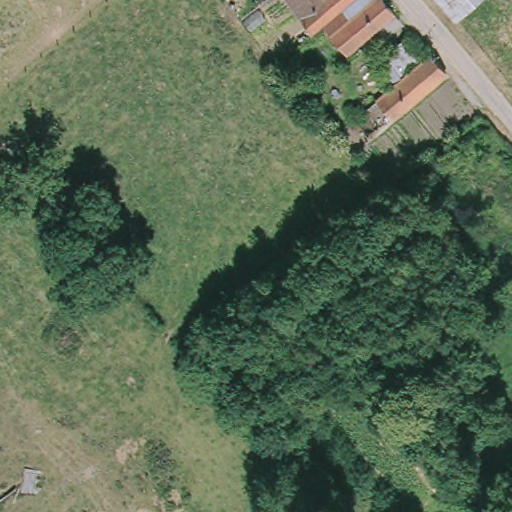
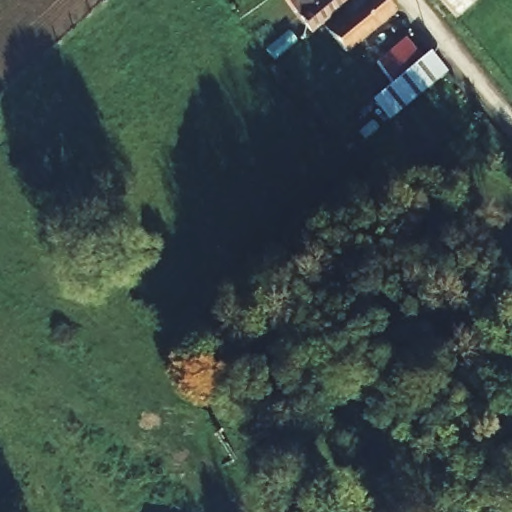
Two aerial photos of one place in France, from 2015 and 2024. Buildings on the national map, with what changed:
unchanged [(319,0),(351,0),(325,24),(312,36),(285,0),(308,0),(312,6),(319,0)]
unchanged [(334,60),(319,42),(331,31),(325,24),(351,0),(385,0),(394,9),(334,60)]
unchanged [(434,0),(479,0),(452,21),(434,0)]
unchanged [(446,71),(391,117),(376,100),(420,63),(431,53),(446,71)]

